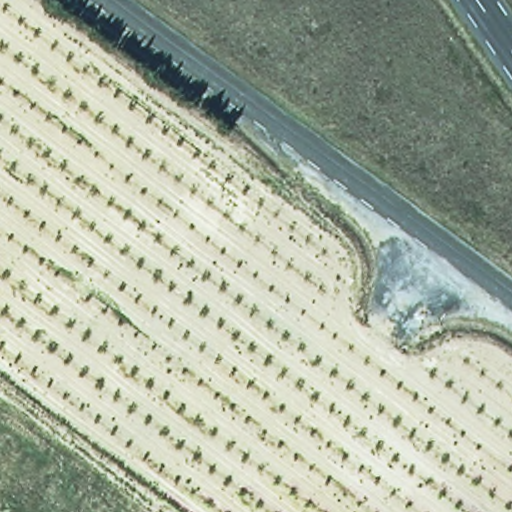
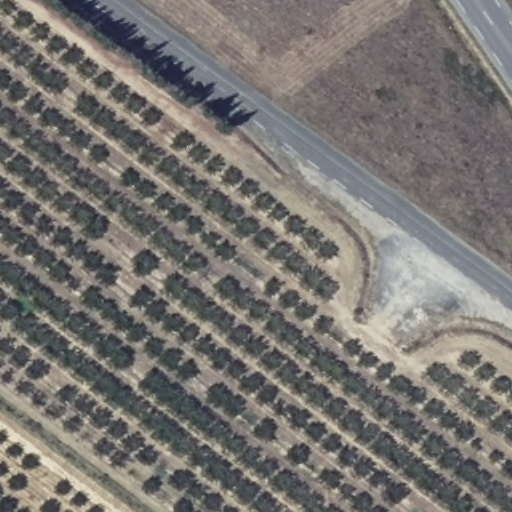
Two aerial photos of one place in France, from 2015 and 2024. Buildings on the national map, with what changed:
[]

